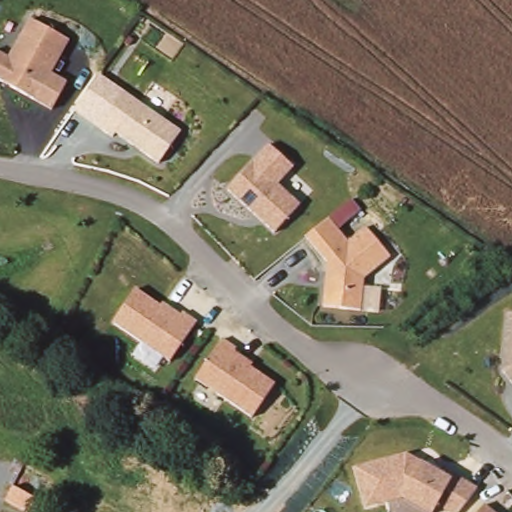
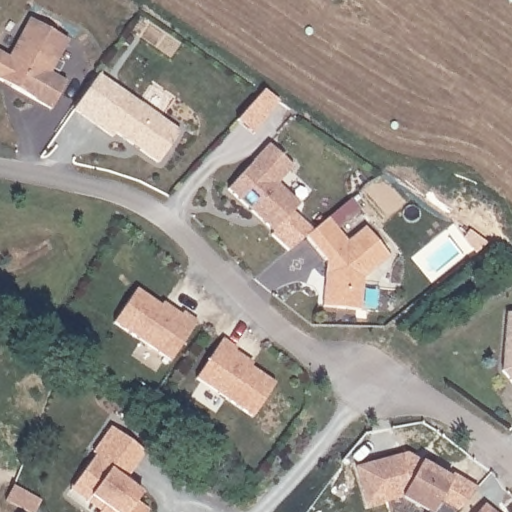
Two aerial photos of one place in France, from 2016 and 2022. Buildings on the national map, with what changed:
unchanged [(49,71),(65,80),(47,112),(0,85),(0,53),(4,55),(26,17),(65,39),(49,71)]
unchanged [(179,130),(157,161),(115,134),(112,137),(95,126),(119,89),(179,130)]
unchanged [(228,190),(268,147),(292,169),(276,186),(301,207),(276,233),(228,190)]
unchanged [(352,199),(361,209),(337,228),(327,217),(352,199)]
unchanged [(364,227),(388,257),(361,277),(357,313),(321,308),(324,263),(302,237),(327,217),(347,241),(364,227)]
unchanged [(158,306),(162,302),(177,313),(180,309),(195,319),(166,362),(110,325),(133,287),(158,306)]
unchanged [(512,312),(512,383),(502,371),(507,311),(512,312)]
unchanged [(237,348),(235,352),(252,363),(249,367),(275,384),(250,421),(192,380),(221,338),(237,348)]
new [(95,456),(92,453),(111,427),(147,453),(127,482),(141,493),(136,501),(150,511),(148,512),(101,512),(69,492),(95,456)]
unchanged [(408,454),(410,458),(423,462),(452,479),(453,473),(477,489),(459,512),(448,512),(438,505),(434,512),(420,512),(400,500),(366,511),(356,468),(408,454)]
unchanged [(26,512),(0,497),(0,495),(7,482),(34,497),(26,512)]
unchanged [(491,512),(480,512),(485,507),(491,512)]

